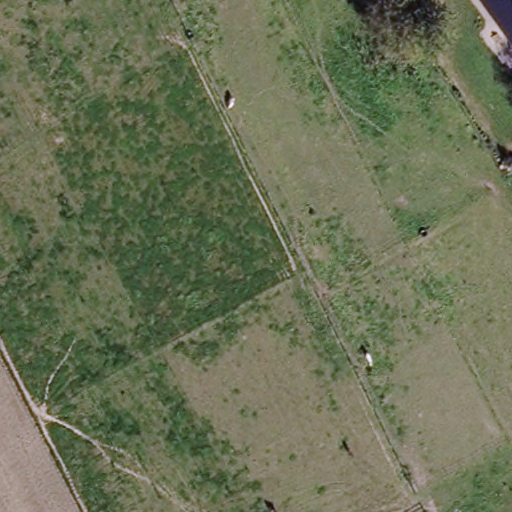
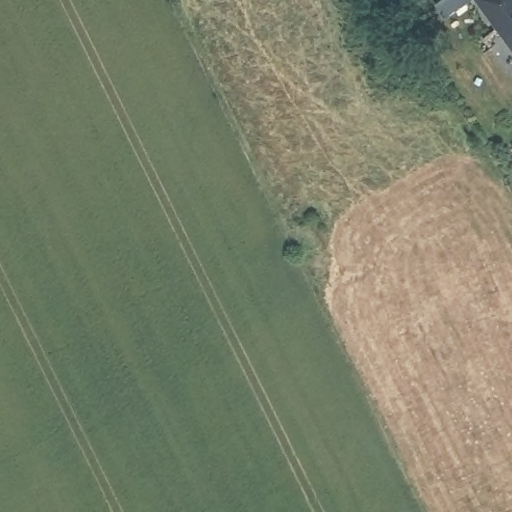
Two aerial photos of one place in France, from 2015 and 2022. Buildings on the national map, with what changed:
unchanged [(512,0),(512,46),(479,0),(512,0)]

